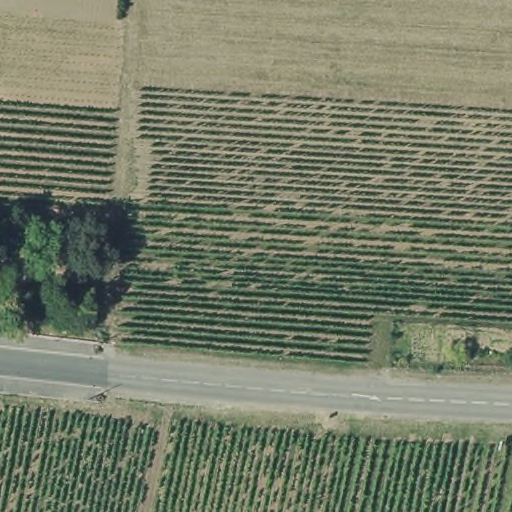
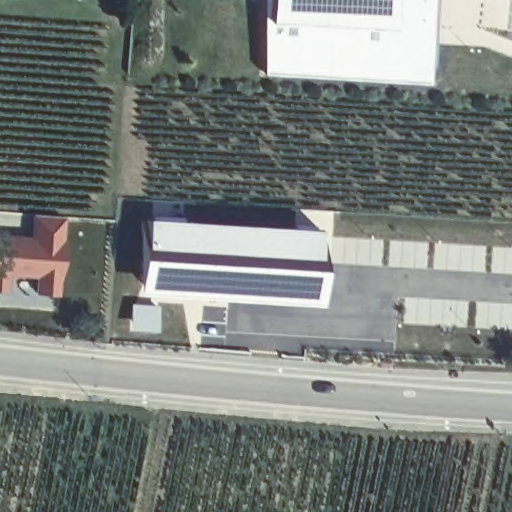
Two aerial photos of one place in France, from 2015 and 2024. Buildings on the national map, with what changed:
new [(263,71),(261,0),(439,0),(434,80),(263,71)]
new [(63,216),(58,297),(35,296),(38,278),(11,277),(6,293),(0,292),(0,237),(28,239),(29,215),(63,216)]
new [(319,231),(316,294),(143,283),(146,222),(319,231)]

